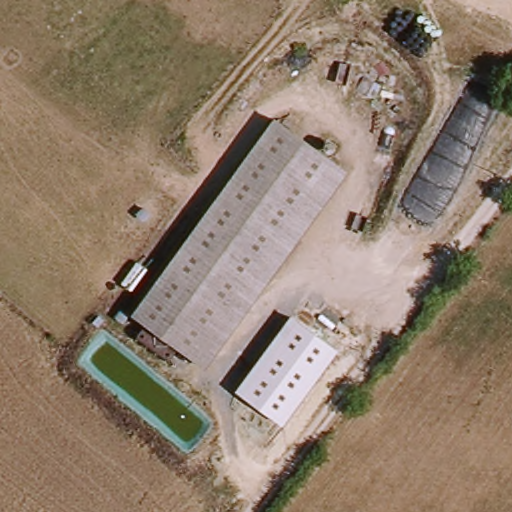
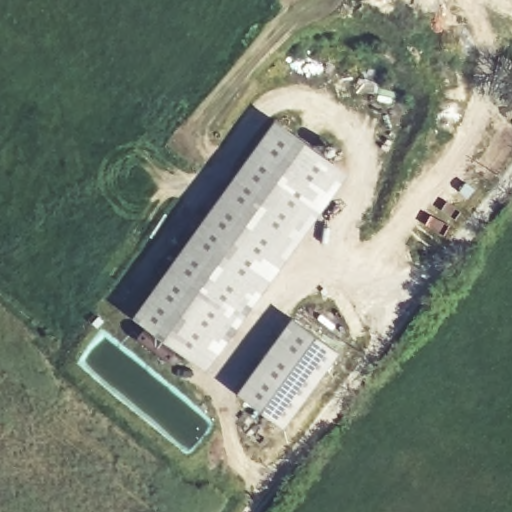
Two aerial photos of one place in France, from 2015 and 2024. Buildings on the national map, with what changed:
unchanged [(277,117),(350,173),(207,369),(134,313),(277,117)]
unchanged [(340,351),(283,426),(237,392),(292,317),(340,351)]

